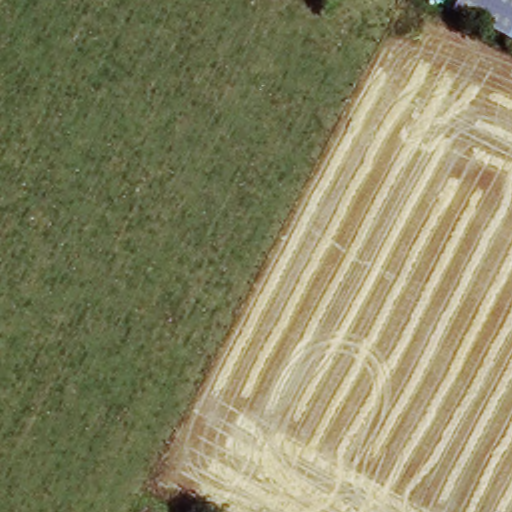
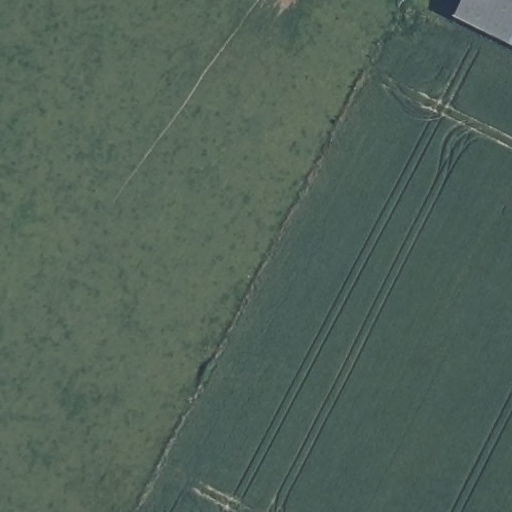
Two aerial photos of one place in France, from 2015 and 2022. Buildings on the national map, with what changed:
unchanged [(461,0),(512,0),(512,32),(505,47),(450,20),(461,0)]
unchanged [(512,32),(512,50),(505,47),(512,32)]

